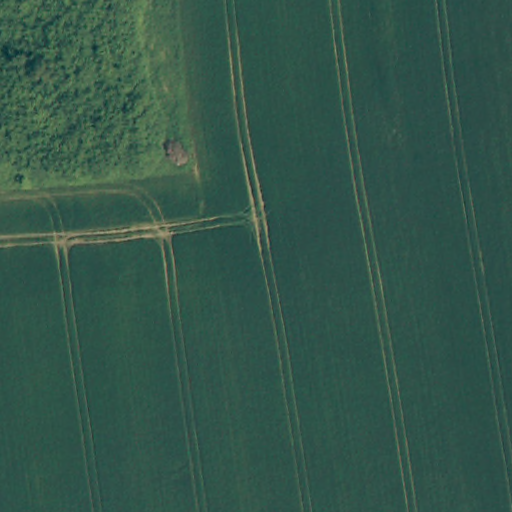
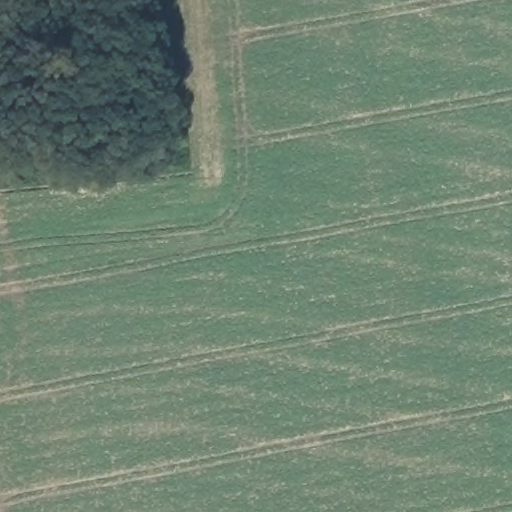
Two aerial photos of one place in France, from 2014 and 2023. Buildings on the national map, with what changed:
[]

